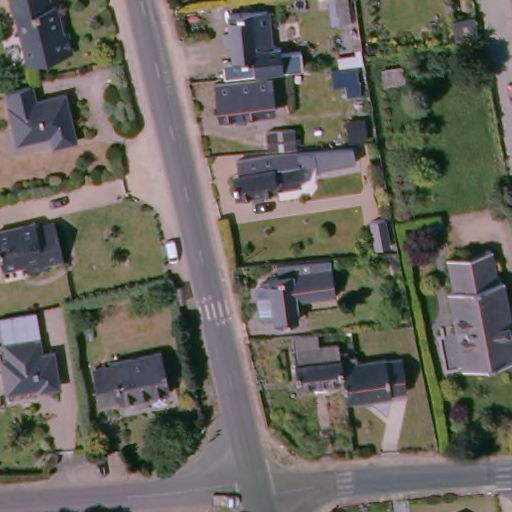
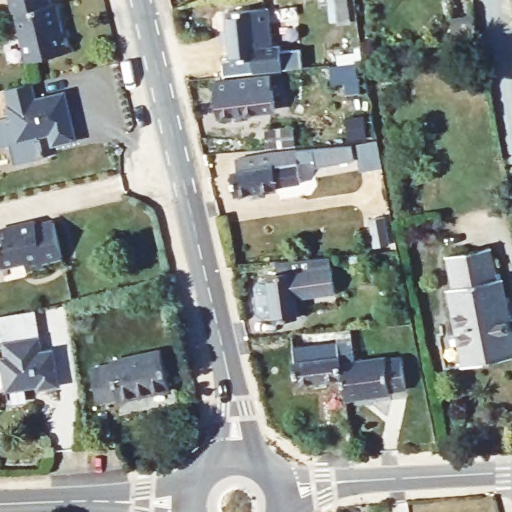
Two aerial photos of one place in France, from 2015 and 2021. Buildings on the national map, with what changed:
unchanged [(62,0),(65,0),(72,27),(77,26),(82,47),(43,57),(38,58),(27,10),(25,10),(23,0),(60,0),(62,0)]
unchanged [(354,20),(356,29),(346,30),(345,21),(339,22),(336,0),(347,0),(349,21),(354,20)]
unchanged [(276,48),(283,48),(284,62),(282,62),(283,72),(244,76),(243,62),(239,63),(238,43),(230,44),(229,33),(237,32),(235,12),(273,9),(276,48)]
unchanged [(469,29),(448,33),(445,20),(466,16),(469,29)]
unchanged [(358,81),(359,81),(361,94),(347,95),(345,82),(333,84),(331,66),(355,63),(358,81)]
unchanged [(405,81),(384,85),(382,69),(402,65),(405,81)]
unchanged [(280,110),(266,111),(267,114),(252,116),(253,121),(240,123),(239,117),(223,119),(220,84),(276,77),(280,110)]
unchanged [(43,100),(48,136),(22,142),(10,90),(38,84),(42,100),(43,100)]
unchanged [(71,93),(82,140),(59,146),(56,134),(48,136),(43,100),(71,93)]
unchanged [(364,131),(358,131),(358,141),(349,141),(348,121),(356,120),(356,122),(363,121),(364,131)]
unchanged [(289,129),(291,148),(272,150),(264,150),(262,131),(289,129)]
unchanged [(287,185),(274,188),(274,190),(258,193),(259,197),(247,200),(246,194),(232,197),(228,175),(233,174),(231,159),(268,153),(292,150),(293,163),(283,165),(287,185)]
unchanged [(390,246),(378,248),(372,220),(384,217),(390,246)]
unchanged [(46,267),(28,271),(26,263),(11,266),(3,268),(0,258),(0,230),(35,222),(36,226),(55,221),(64,258),(60,259),(45,262),(46,267)]
unchanged [(512,287),(512,360),(474,366),(460,289),(464,288),(459,257),(499,249),(506,280),(511,279),(512,287)]
unchanged [(336,266),(340,292),(301,298),(304,318),(281,321),(279,303),(272,304),(271,293),(277,292),(274,275),(336,266)]
unchanged [(354,381),(337,383),(337,388),(327,389),(326,384),(308,386),(305,363),(307,363),(303,335),(321,333),(328,333),(329,336),(339,336),(340,343),(349,342),(351,351),(359,350),(359,355),(364,355),(366,362),(352,363),(354,381)]
unchanged [(59,387),(41,390),(41,387),(9,392),(4,361),(8,361),(5,345),(16,344),(41,340),(43,355),(54,353),(59,387)]
unchanged [(171,392),(120,403),(119,400),(100,404),(93,370),(112,366),(112,363),(162,352),(171,392)]
unchanged [(396,358),(396,360),(412,358),(417,391),(401,393),(401,395),(357,400),(354,381),(352,363),(366,362),(396,358)]

